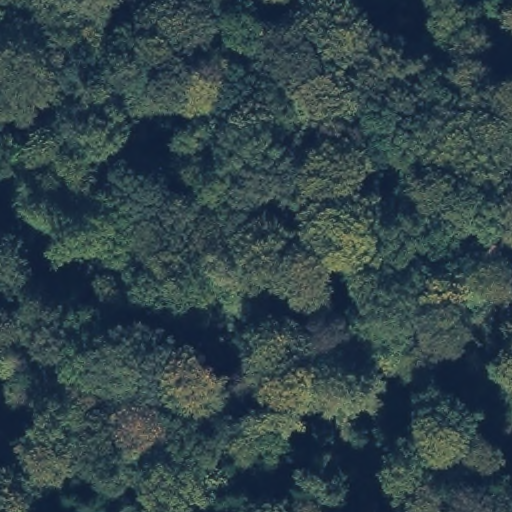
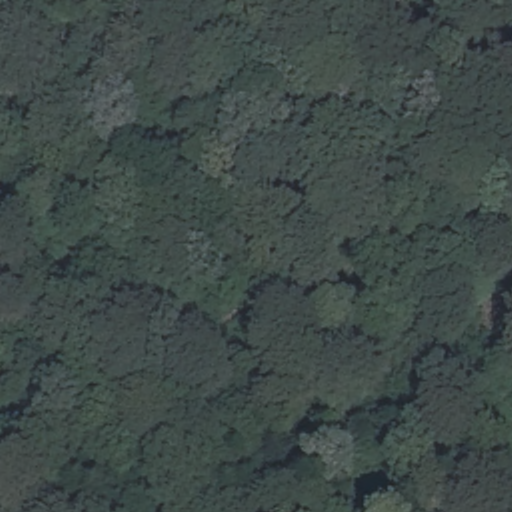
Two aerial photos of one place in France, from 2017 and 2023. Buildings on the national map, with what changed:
[]

